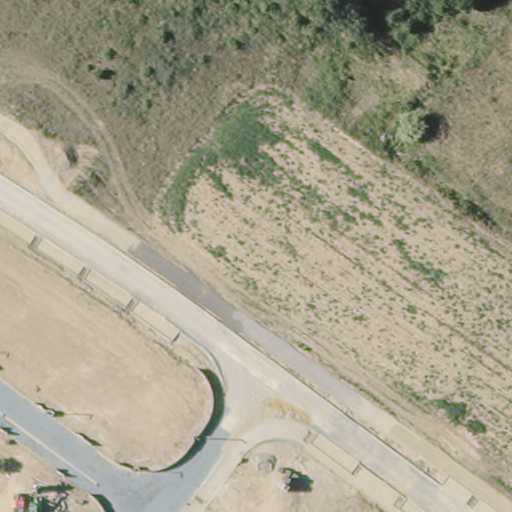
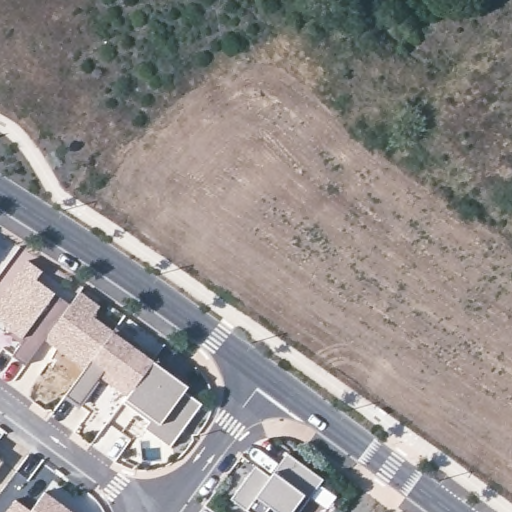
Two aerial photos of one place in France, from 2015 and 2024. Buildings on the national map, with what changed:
new [(27,259),(42,270),(35,278),(72,303),(44,341),(25,367),(12,357),(25,340),(0,322),(0,296),(27,259)]
new [(72,303),(80,292),(100,307),(93,317),(113,332),(85,370),(62,353),(65,350),(60,347),(57,350),(44,341),(72,303)]
new [(96,382),(79,406),(66,396),(85,370),(113,332),(116,328),(135,342),(131,347),(152,363),(133,388),(123,402),(96,382)]
new [(189,387),(185,393),(201,405),(170,447),(145,431),(150,422),(123,402),(125,400),(133,388),(152,363),(189,387)]
new [(254,467),(269,477),(285,455),(321,480),(297,512),(275,512),(269,508),(266,512),(246,512),(230,501),(254,467)]
new [(0,464),(0,460),(2,462),(0,464)]
new [(45,493),(71,512),(31,512),(45,493)]
new [(16,501),(31,512),(7,512),(16,501)]

